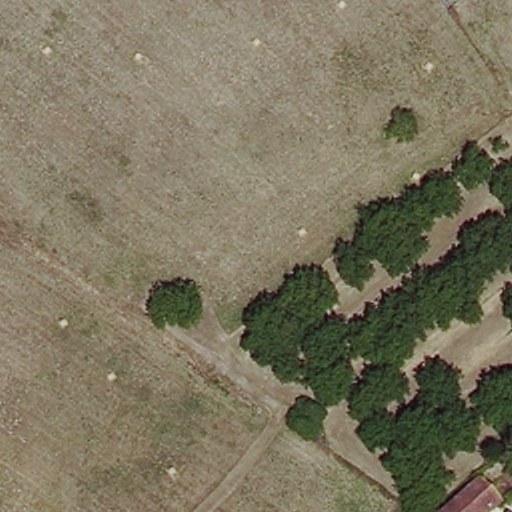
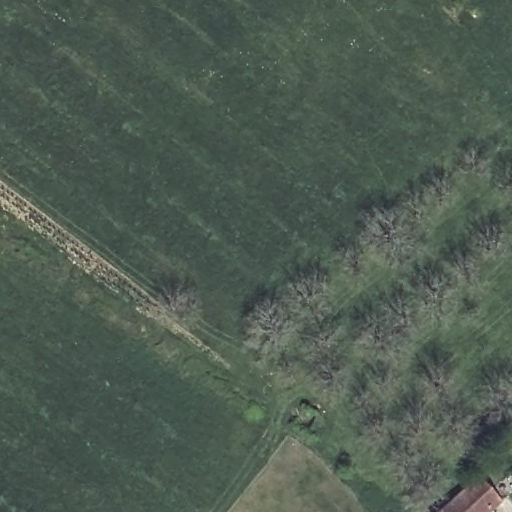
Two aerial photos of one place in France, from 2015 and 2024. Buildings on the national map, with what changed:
unchanged [(290,422),(302,401),(320,416),(308,434),(290,422)]
unchanged [(447,512),(483,478),(495,490),(512,474),(512,494),(493,512),(447,512)]

